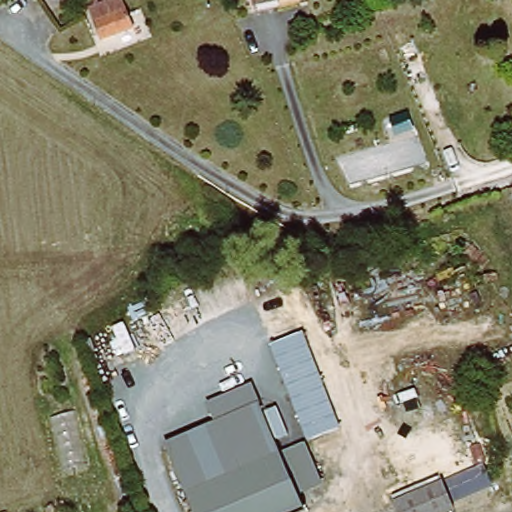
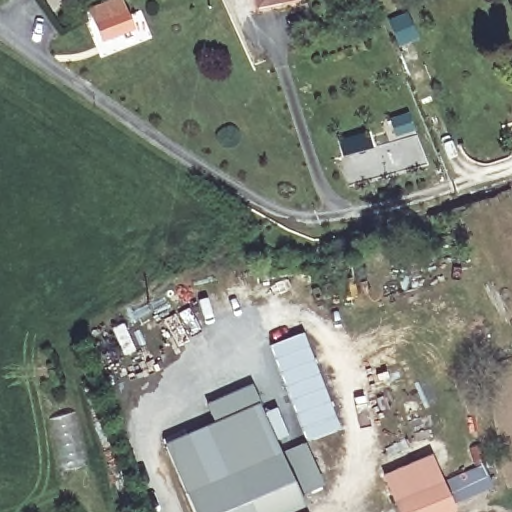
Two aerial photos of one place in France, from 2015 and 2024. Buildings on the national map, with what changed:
unchanged [(261,6),(260,0),(289,0),(261,6)]
unchanged [(122,8),(132,35),(101,47),(91,19),(122,8)]
unchanged [(273,344),(305,332),(341,427),(309,439),(273,344)]
unchanged [(205,399),(256,379),(269,410),(244,418),(221,427),(216,429),(205,399)]
unchanged [(300,490),(308,512),(204,512),(178,442),(216,429),(221,427),(244,418),(269,410),(284,447),(304,440),(320,483),(300,490)]
new [(452,504),(455,511),(453,512),(399,512),(383,475),(431,455),(443,482),(481,465),(491,487),(452,504)]
demolished [(461,512),(409,512),(404,499),(451,480),(459,501),(463,512),(461,512)]

